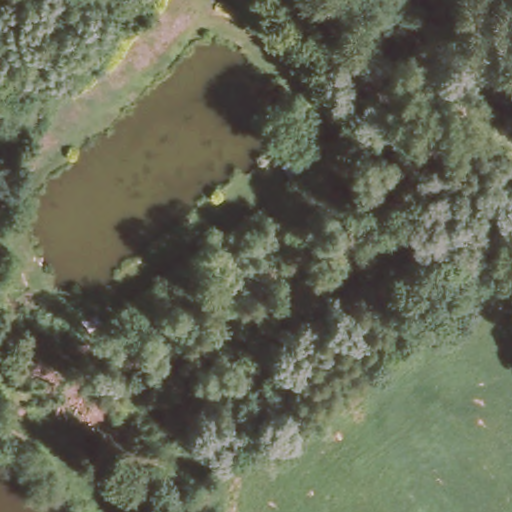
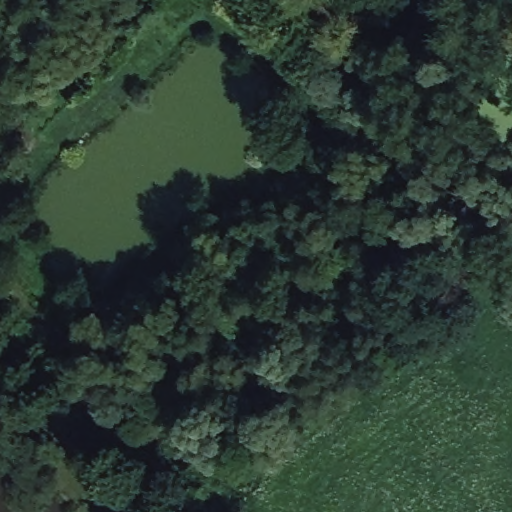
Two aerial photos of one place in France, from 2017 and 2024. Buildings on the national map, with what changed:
unchanged [(308,146),(321,166),(302,184),(297,179),(290,183),(276,169),(308,146)]

